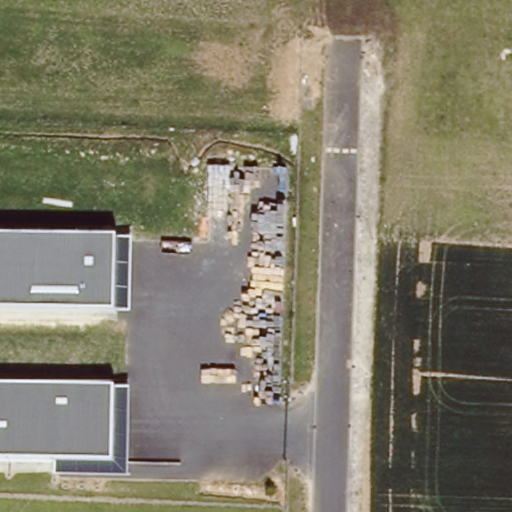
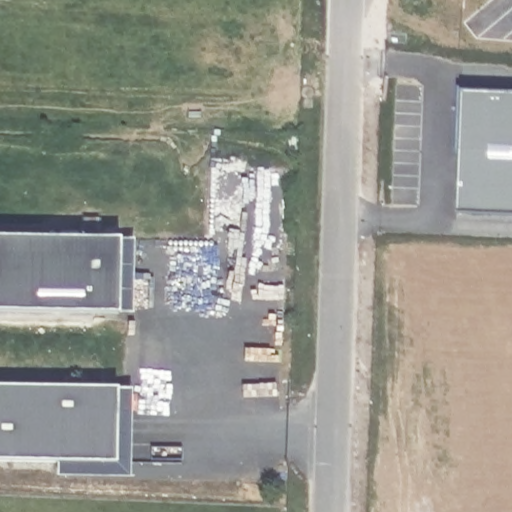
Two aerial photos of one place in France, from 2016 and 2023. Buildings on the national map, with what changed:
new [(458,212),(461,90),(512,92),(512,214),(458,212)]
unchanged [(0,310),(0,237),(118,238),(133,241),(133,312),(115,312),(0,310)]
unchanged [(136,384),(134,480),(58,478),(58,464),(0,463),(0,386),(114,388),(136,384)]

